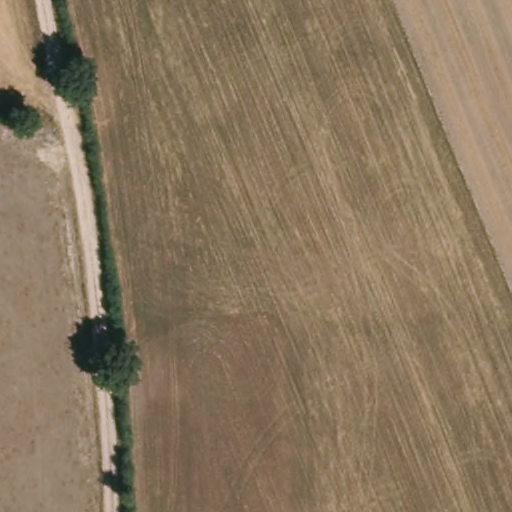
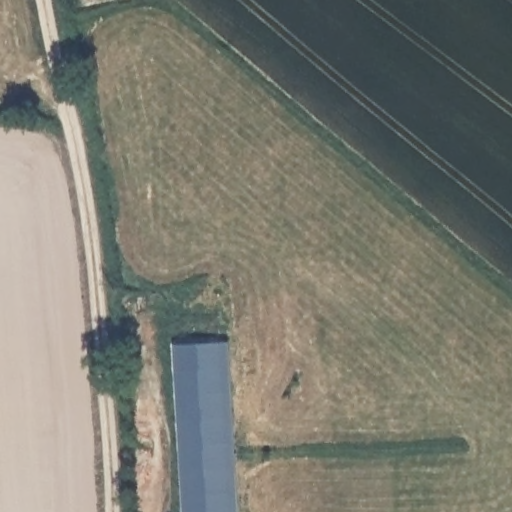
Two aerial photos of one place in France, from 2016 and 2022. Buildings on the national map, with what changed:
new [(222,341),(231,512),(185,512),(175,343),(222,341)]
new [(228,341),(237,512),(231,512),(222,341),(228,341)]

